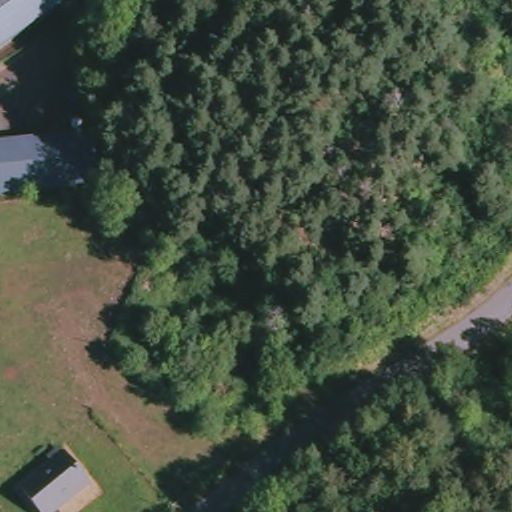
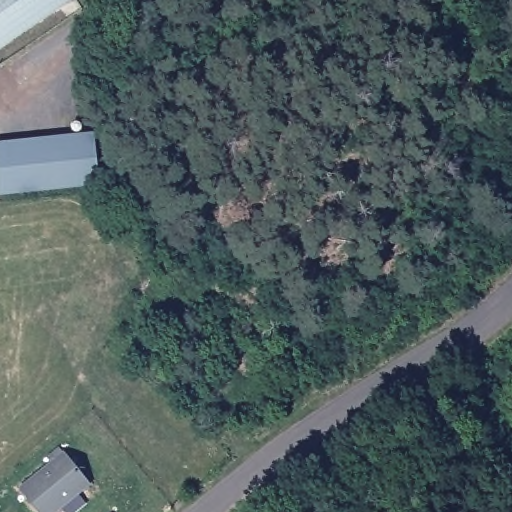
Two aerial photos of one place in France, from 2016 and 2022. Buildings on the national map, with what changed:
unchanged [(80,0),(83,4),(0,61),(0,0),(80,0)]
unchanged [(0,194),(0,145),(96,137),(100,186),(0,194)]
unchanged [(97,488),(65,512),(42,512),(25,492),(73,455),(97,488)]

